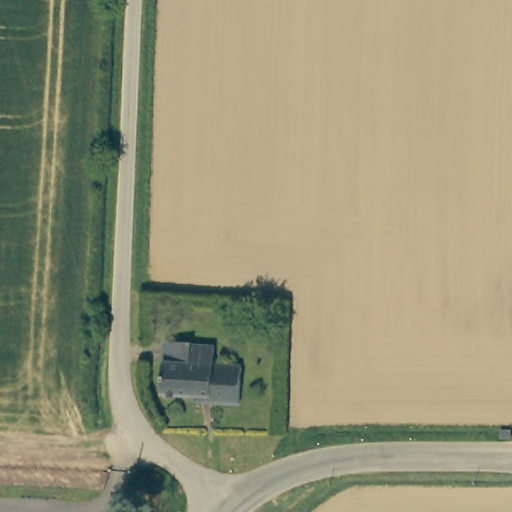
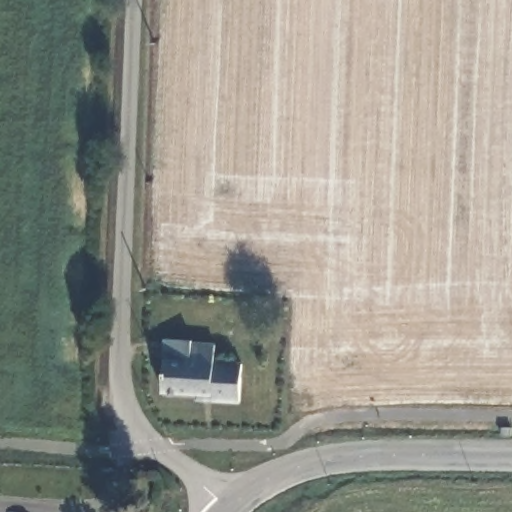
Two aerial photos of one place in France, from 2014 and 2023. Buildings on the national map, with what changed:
unchanged [(193,342),(194,346),(215,346),(216,367),(242,367),(242,403),(211,402),(210,397),(164,397),(164,342),(193,342)]

